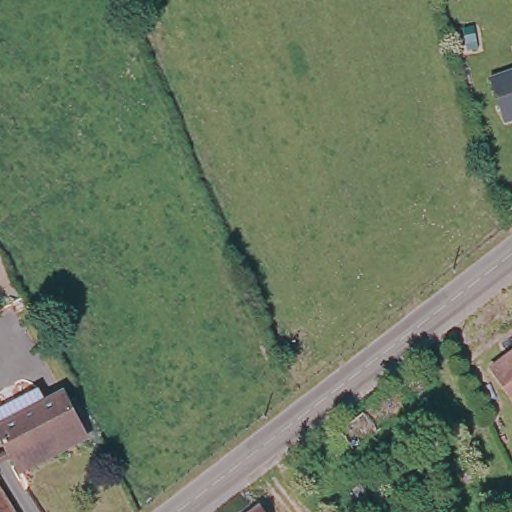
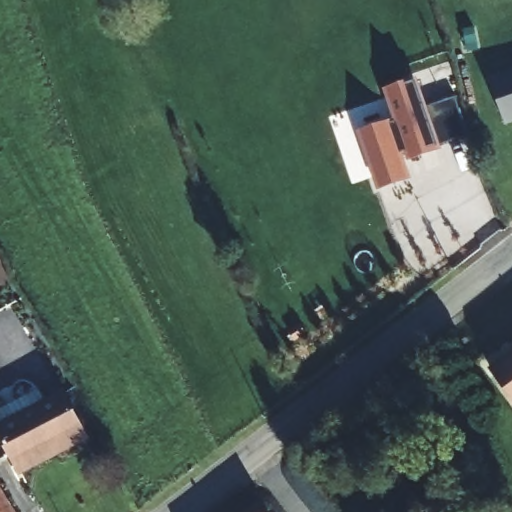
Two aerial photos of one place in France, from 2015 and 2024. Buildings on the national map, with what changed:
unchanged [(512,122),(504,124),(488,78),(512,70),(512,122)]
new [(428,108),(456,98),(469,133),(440,143),(442,149),(405,161),(412,179),(378,191),(355,130),(393,117),(383,89),(417,77),(428,108)]
unchanged [(512,358),(512,399),(492,374),(512,358)]
unchanged [(18,459),(5,434),(1,424),(66,391),(70,397),(91,438),(64,452),(25,472),(18,459)]
unchanged [(390,396),(407,416),(335,468),(302,464),(390,396)]
unchanged [(11,512),(0,512),(0,492),(11,512)]
unchanged [(266,504),(271,512),(253,512),(266,504)]

